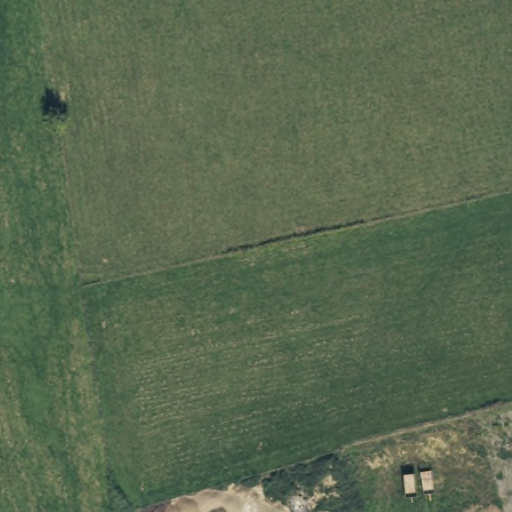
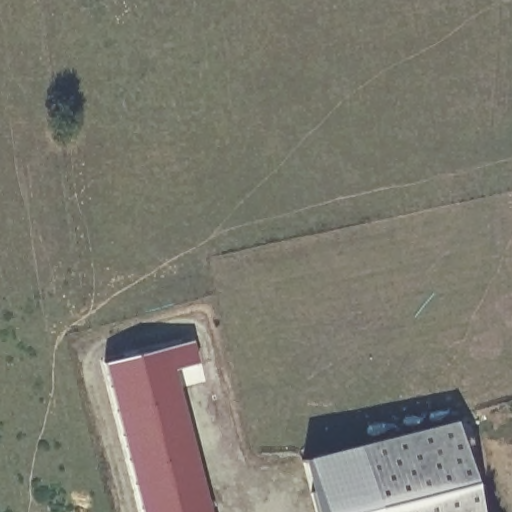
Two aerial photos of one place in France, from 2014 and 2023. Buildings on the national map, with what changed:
new [(193,342),(199,363),(173,369),(209,512),(140,512),(103,364),(193,342)]
new [(354,446),(451,422),(474,512),(371,512),(354,446)]
new [(371,512),(315,512),(301,459),(354,446),(371,512)]

